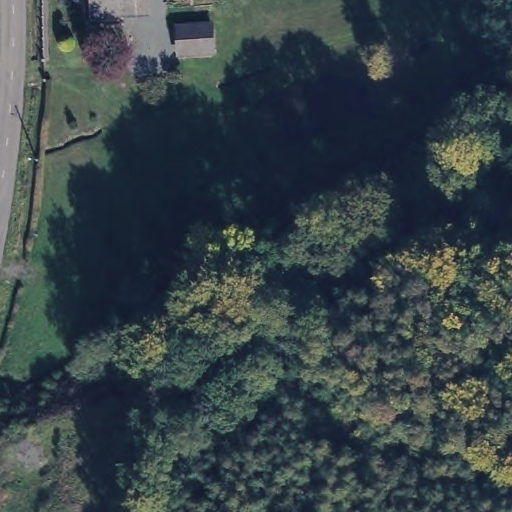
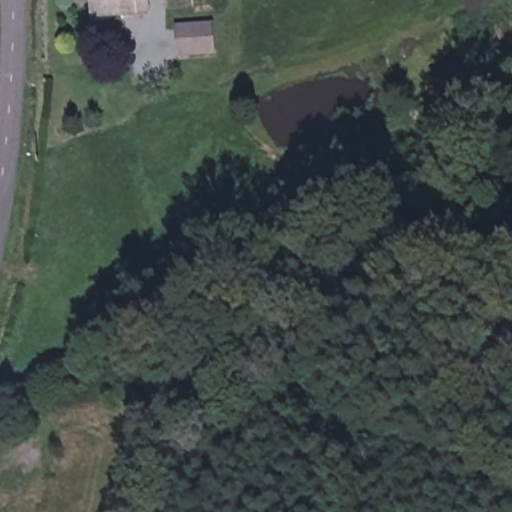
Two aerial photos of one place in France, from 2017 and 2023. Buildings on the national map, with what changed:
unchanged [(122,12),(89,13),(88,0),(121,0),(122,12)]
unchanged [(210,16),(212,50),(172,52),(170,19),(210,16)]

